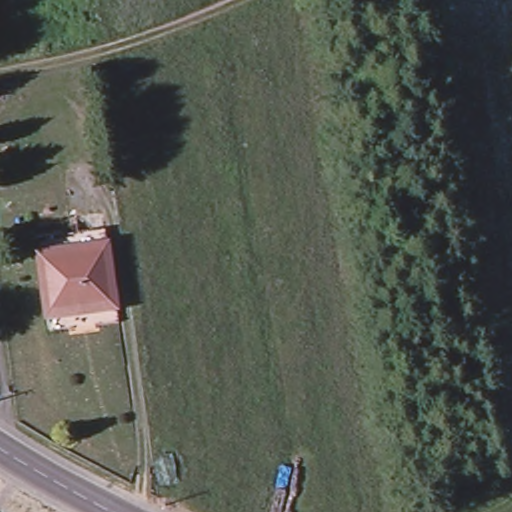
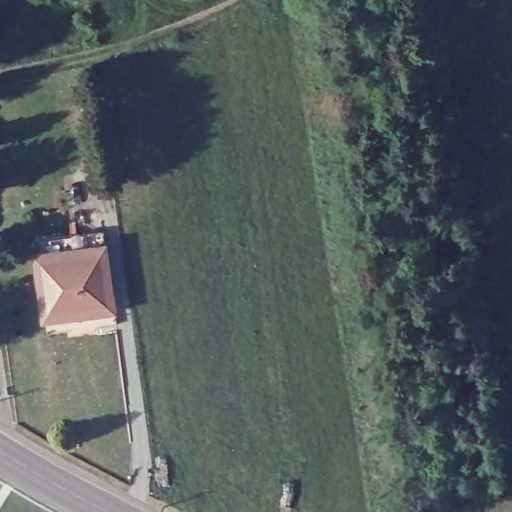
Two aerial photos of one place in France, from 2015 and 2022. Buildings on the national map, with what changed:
unchanged [(45,317),(36,252),(105,243),(112,285),(104,286),(107,308),(45,317)]
unchanged [(117,322),(47,331),(45,317),(107,308),(104,286),(112,285),(117,322)]

